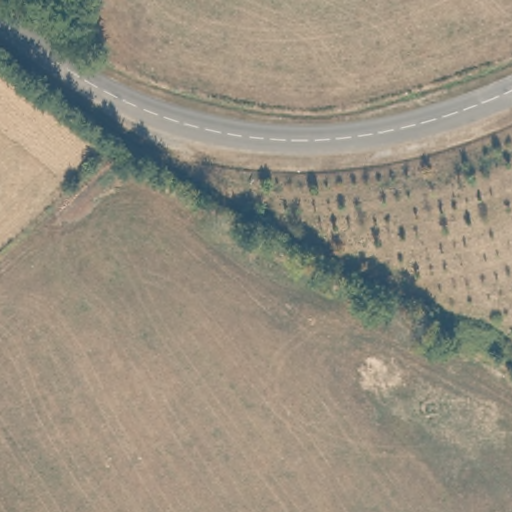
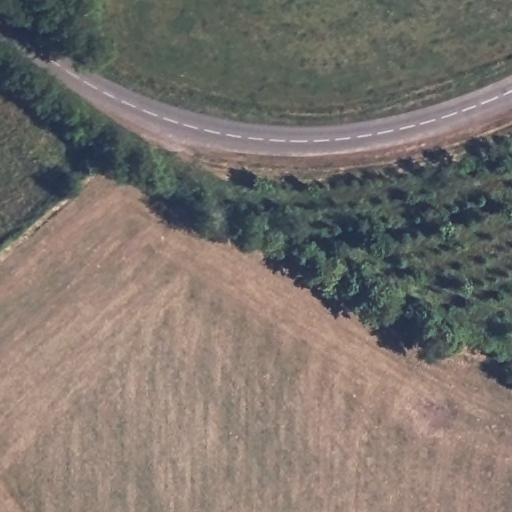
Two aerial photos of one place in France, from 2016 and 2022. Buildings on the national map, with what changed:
[]

